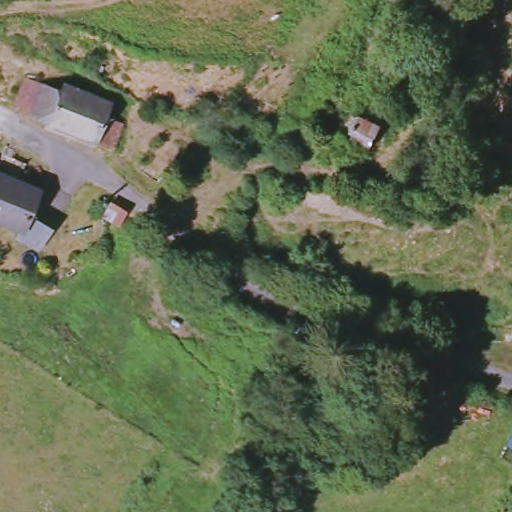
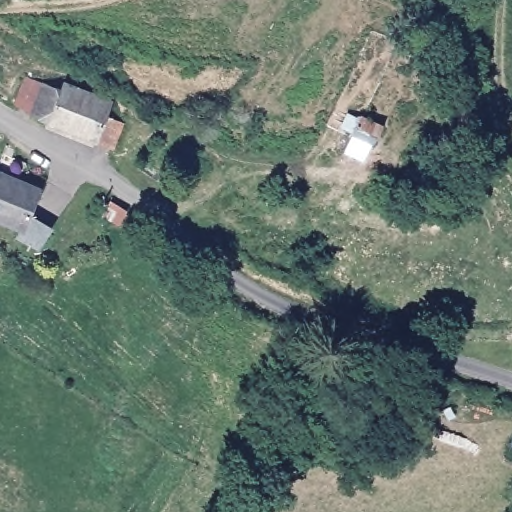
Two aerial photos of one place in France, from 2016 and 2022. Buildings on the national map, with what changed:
unchanged [(68,81),(113,102),(105,118),(129,129),(117,152),(57,129),(33,114),(15,104),(28,78),(44,86),(62,94),(68,81)]
unchanged [(343,103),(351,107),(355,101),(375,112),(363,132),(344,121),(347,116),(339,111),(343,103)]
unchanged [(31,169),(45,174),(30,220),(57,227),(47,259),(13,249),(20,225),(0,218),(0,173),(27,181),(31,169)]

